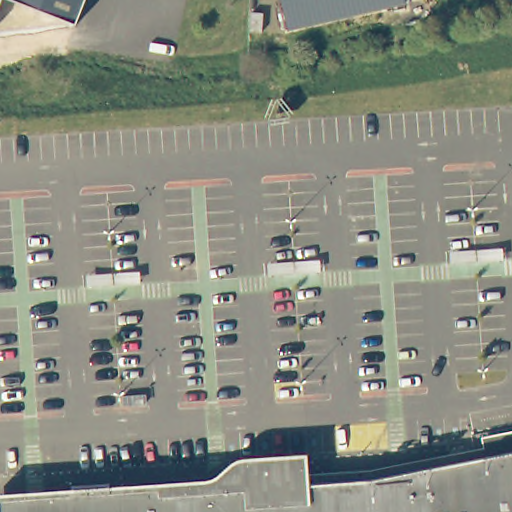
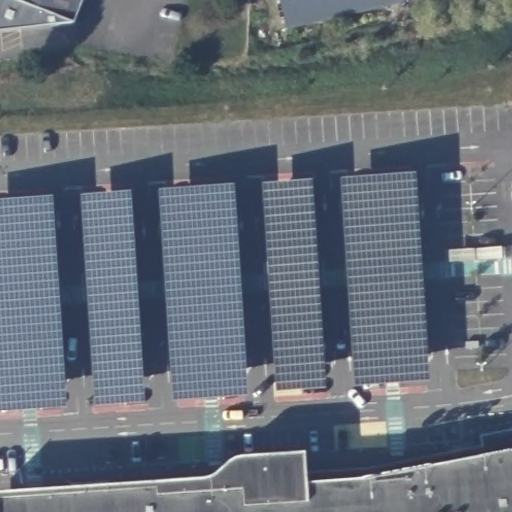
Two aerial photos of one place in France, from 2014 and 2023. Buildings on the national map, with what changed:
unchanged [(0,20),(0,0),(8,0),(7,2),(0,20)]
unchanged [(44,16),(7,2),(8,0),(91,0),(79,30),(44,16)]
unchanged [(288,30),(281,0),(404,0),(404,3),(288,30)]
new [(419,178),(434,393),(358,398),(343,183),(419,178)]
new [(319,185),(334,400),(274,404),(260,188),(319,185)]
new [(238,190),(252,405),(175,410),(161,195),(238,190)]
new [(138,197),(152,412),(93,416),(79,200),(138,197)]
new [(69,417),(0,422),(0,206),(55,202),(69,417)]
unchanged [(512,453),(512,512),(0,512),(0,510),(240,491),(297,486),(370,481),(512,453)]
unchanged [(240,491),(239,472),(295,468),(297,486),(240,491)]

